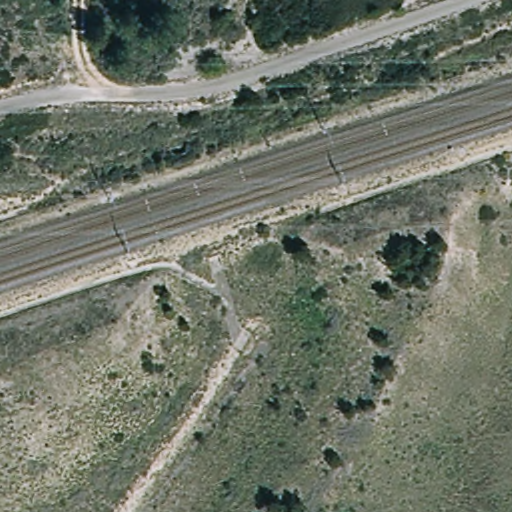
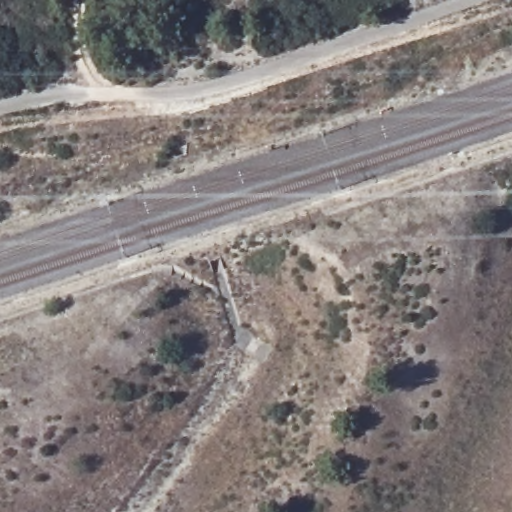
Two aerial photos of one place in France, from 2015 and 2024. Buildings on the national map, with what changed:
[]

